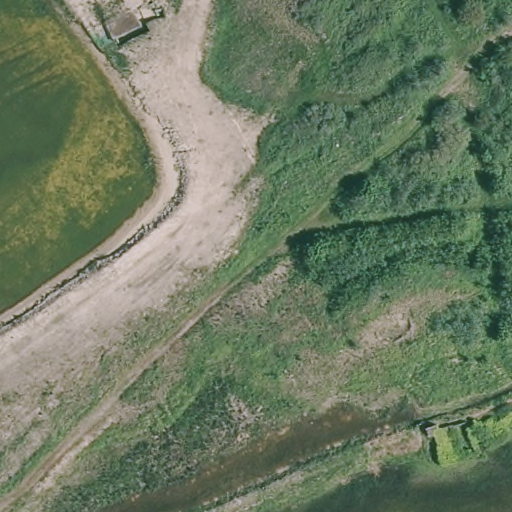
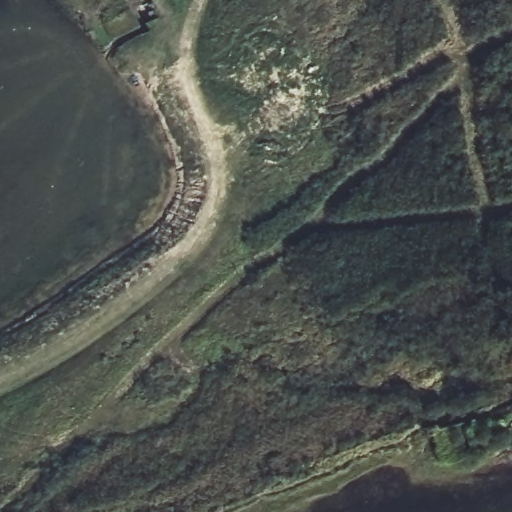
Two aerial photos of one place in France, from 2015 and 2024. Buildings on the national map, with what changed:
unchanged [(133,10),(140,27),(113,39),(103,19),(133,10)]

